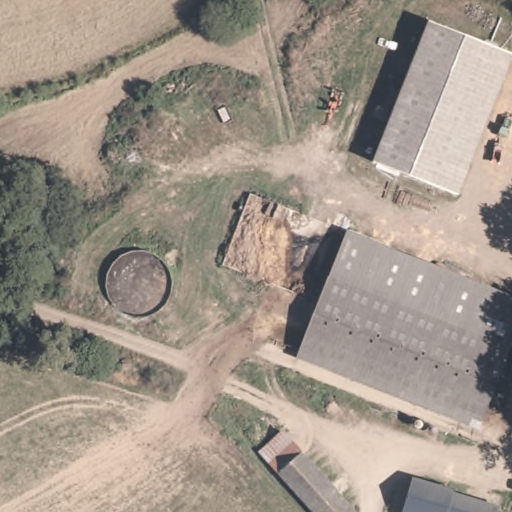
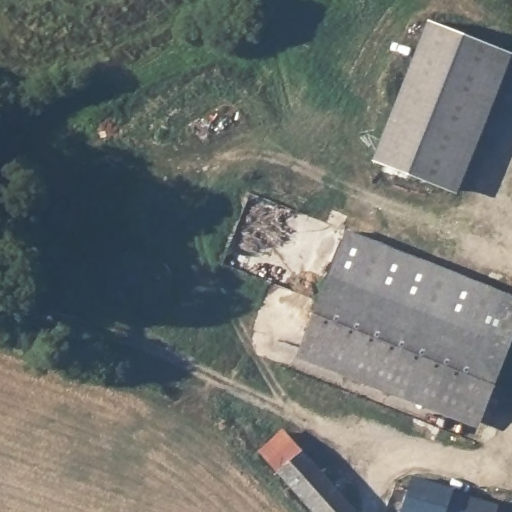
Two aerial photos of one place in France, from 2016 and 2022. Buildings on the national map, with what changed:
unchanged [(428,18),(512,52),(512,62),(458,196),(372,161),(428,18)]
unchanged [(512,288),(512,349),(483,424),(301,352),(351,226),(512,288)]
unchanged [(358,511),(357,512),(314,512),(258,450),(283,428),(358,511)]
unchanged [(483,500),(487,490),(501,495),(496,512),(401,512),(412,475),(483,500)]

